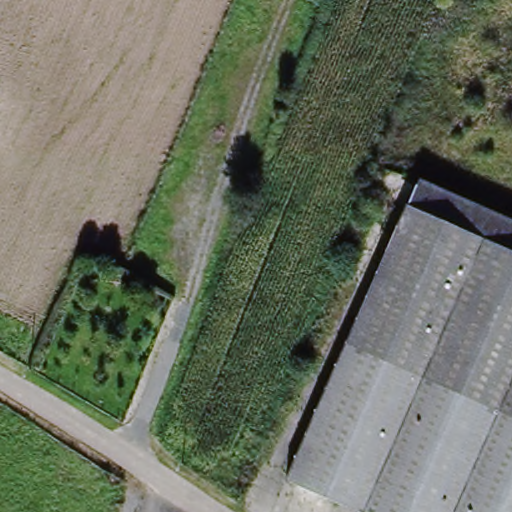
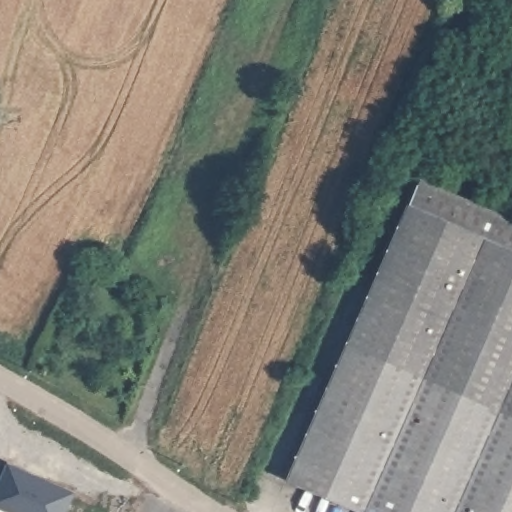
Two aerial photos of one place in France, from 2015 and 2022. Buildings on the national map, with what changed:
unchanged [(512,230),(512,250),(410,205),(416,190),(512,230)]
unchanged [(289,479),(404,204),(410,205),(512,250),(512,512),(362,512),(363,511),(289,479)]
new [(32,476),(30,480),(38,483),(39,480),(73,495),(65,512),(7,512),(0,509),(0,486),(9,466),(32,476)]

